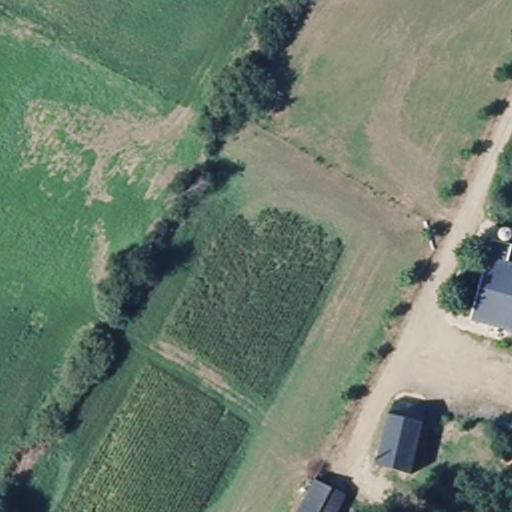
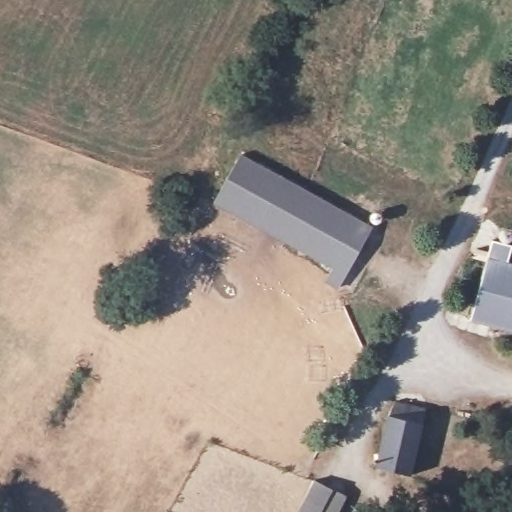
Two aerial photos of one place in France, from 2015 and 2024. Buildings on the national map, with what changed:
new [(371,227),(339,287),(326,281),(332,268),(213,201),(241,155),(371,227)]
unchanged [(511,246),(506,268),(512,270),(512,328),(471,315),(490,241),(511,246)]
unchanged [(394,412),(423,419),(410,484),(377,477),(394,412)]
unchanged [(341,512),(301,512),(315,483),(348,498),(341,512)]

